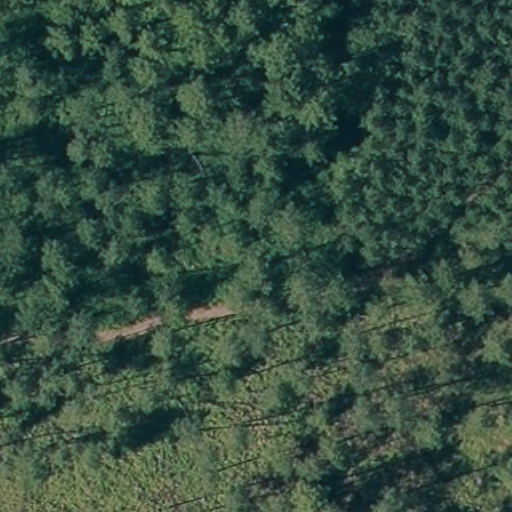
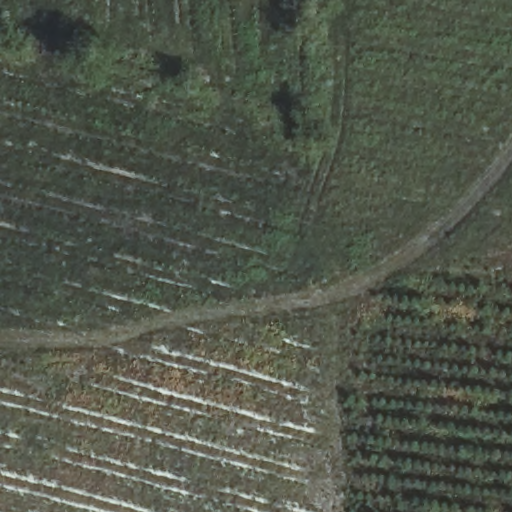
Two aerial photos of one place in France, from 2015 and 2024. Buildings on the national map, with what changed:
[]

